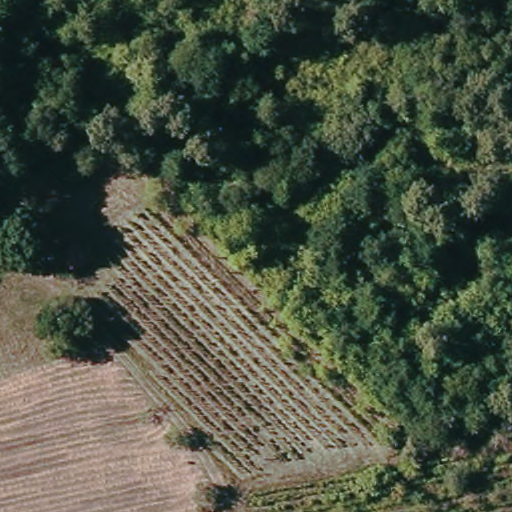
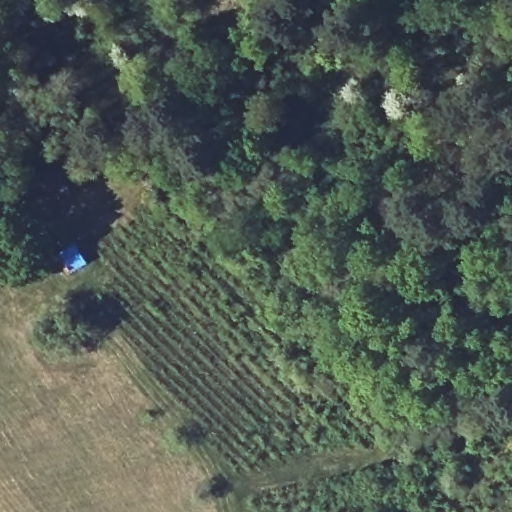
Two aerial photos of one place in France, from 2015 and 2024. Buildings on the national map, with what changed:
unchanged [(75,239),(89,257),(73,269),(58,253),(75,239)]

